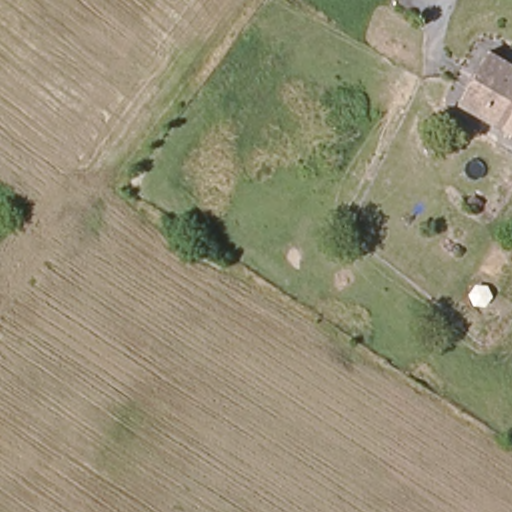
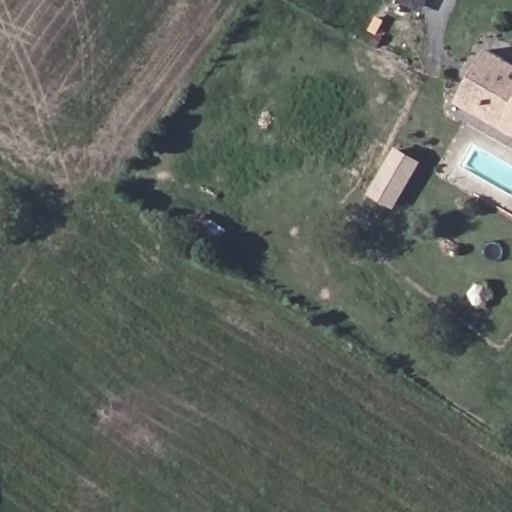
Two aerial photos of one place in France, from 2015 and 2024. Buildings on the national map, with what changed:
unchanged [(463,103),(494,51),(512,63),(512,134),(463,103)]
new [(396,147),(423,162),(395,210),(368,195),(396,147)]

